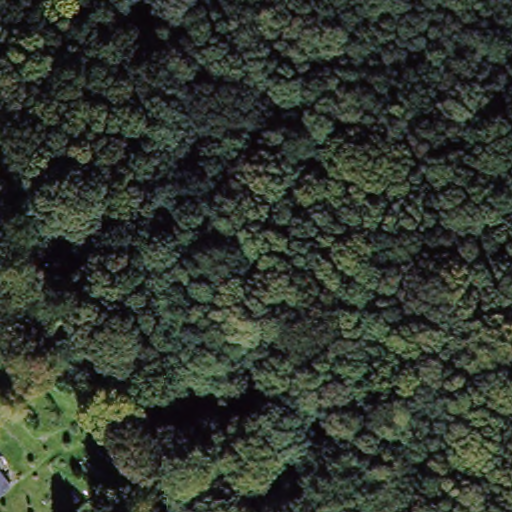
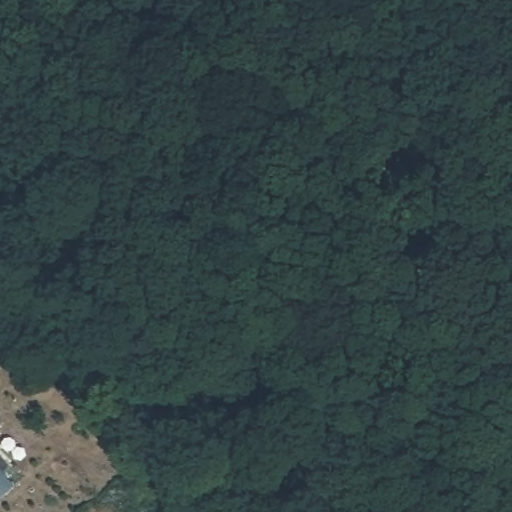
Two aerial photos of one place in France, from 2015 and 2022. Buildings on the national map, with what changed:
unchanged [(19,344),(37,359),(26,374),(7,358),(19,344)]
unchanged [(0,420),(0,415),(3,417),(0,420)]
unchanged [(1,470),(14,483),(0,497),(0,454),(9,463),(1,470)]

